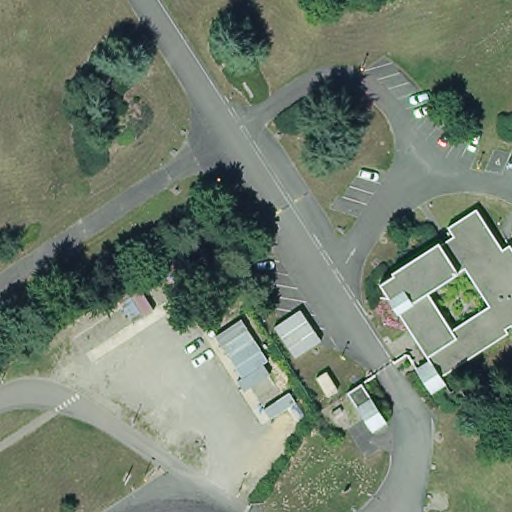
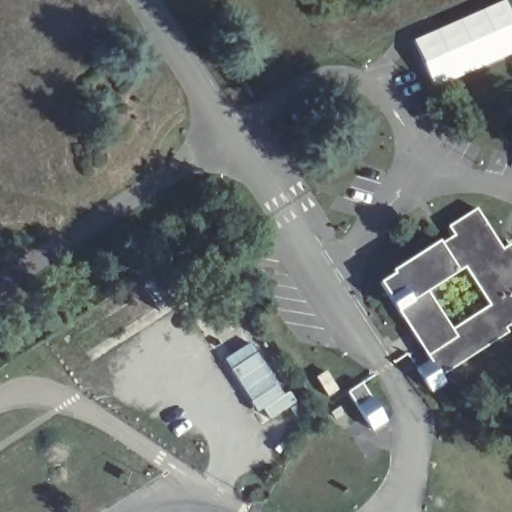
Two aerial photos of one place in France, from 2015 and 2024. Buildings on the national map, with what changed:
new [(502,0),(506,0),(512,14),(512,55),(433,89),(412,40),(502,0)]
unchanged [(506,249),(512,244),(512,325),(508,327),(512,332),(445,376),(448,382),(434,391),(420,369),(433,361),(421,342),(426,340),(418,327),(413,330),(383,282),(443,243),(447,249),(460,240),(451,226),(480,208),(506,249)]
unchanged [(326,372),(337,390),(328,396),(316,377),(326,372)]
unchanged [(352,387),(376,425),(362,435),(337,397),(352,387)]

